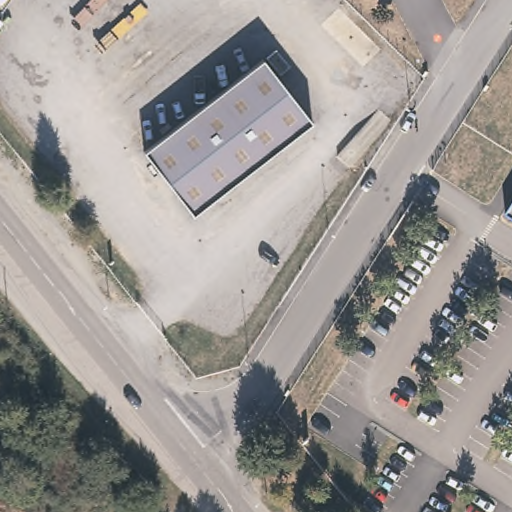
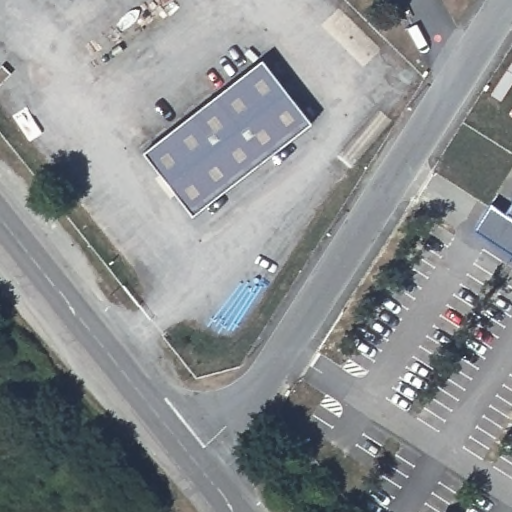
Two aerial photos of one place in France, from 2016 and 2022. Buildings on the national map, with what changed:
unchanged [(142,145),(261,53),(310,116),(190,208),(142,145)]
unchanged [(512,200),(512,219),(503,214),(512,200)]
new [(503,214),(512,219),(512,255),(473,230),(489,204),(503,214)]
unchanged [(435,232),(451,245),(423,285),(407,273),(435,232)]

